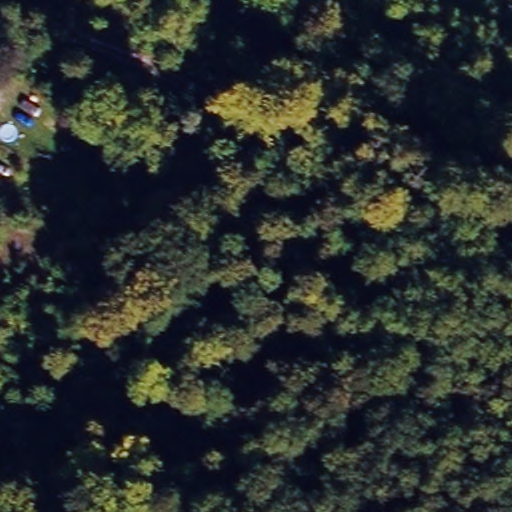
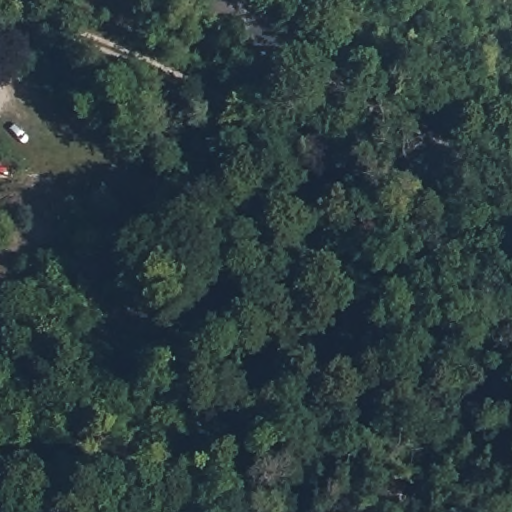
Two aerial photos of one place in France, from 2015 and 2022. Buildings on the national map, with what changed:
[]

